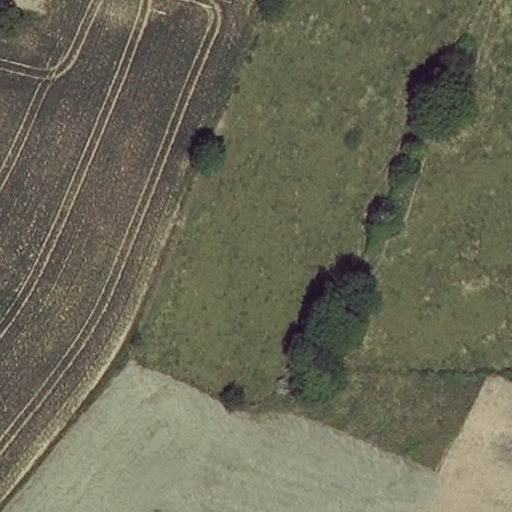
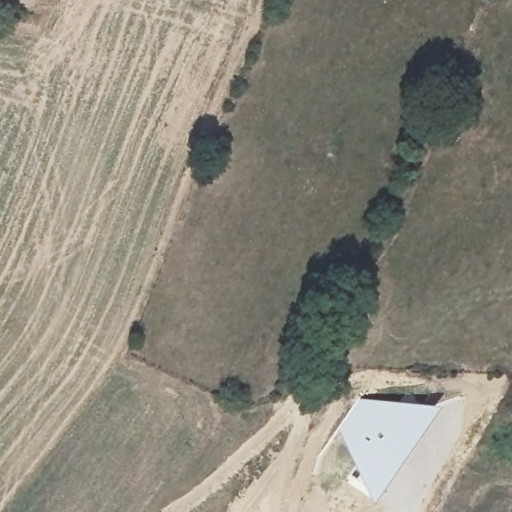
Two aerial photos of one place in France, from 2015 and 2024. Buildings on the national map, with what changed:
new [(358,396),(443,405),(441,411),(426,434),(378,504),(369,493),(348,447),(336,429),(358,396)]

